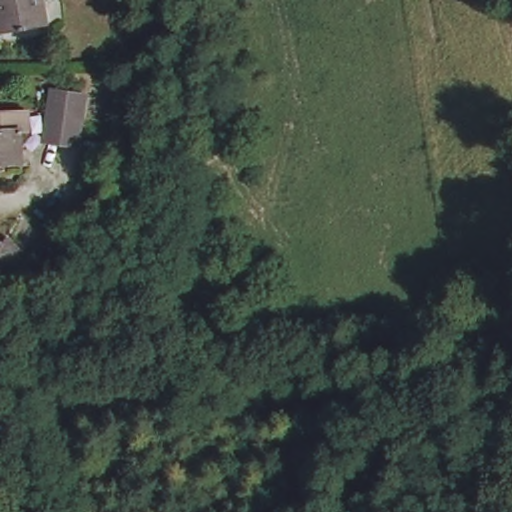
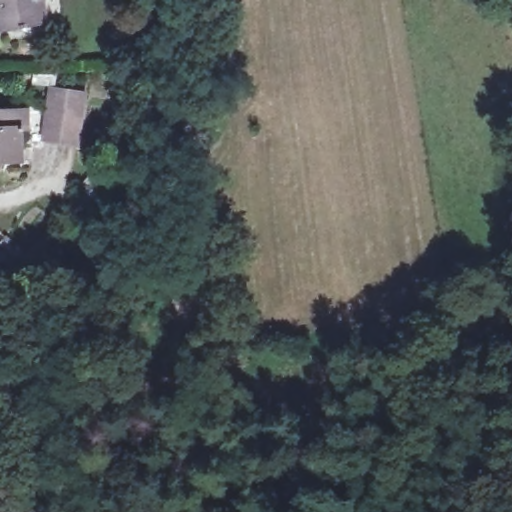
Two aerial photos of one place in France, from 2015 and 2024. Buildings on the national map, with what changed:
unchanged [(2,37),(0,32),(0,0),(39,0),(46,28),(2,37)]
unchanged [(57,156),(66,106),(99,114),(91,162),(57,156)]
unchanged [(31,122),(31,137),(23,137),(23,172),(0,172),(0,122),(31,122)]

